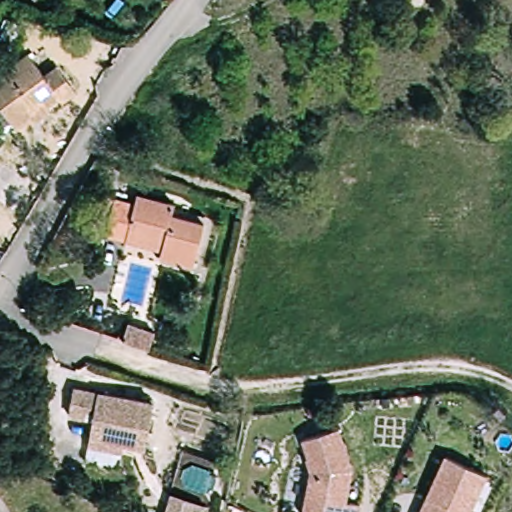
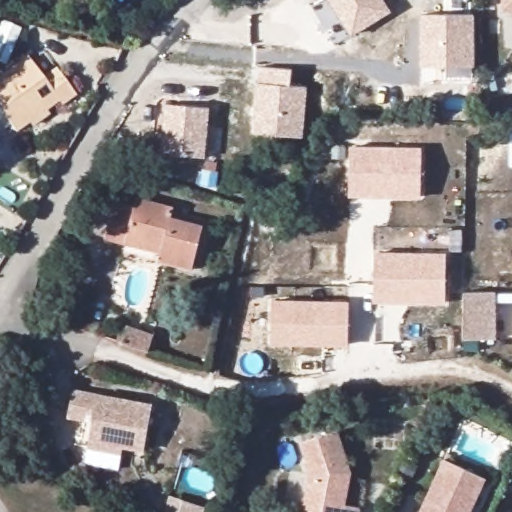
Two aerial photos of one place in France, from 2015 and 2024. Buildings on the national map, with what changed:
new [(329,0),(385,0),(392,11),(351,36),(329,0)]
new [(501,11),(501,0),(512,0),(512,11),(501,11)]
new [(422,14),(475,13),(476,66),(472,66),(472,75),(449,75),(448,66),(422,67),(422,14)]
unchanged [(26,120),(8,132),(0,120),(0,73),(26,56),(41,79),(55,70),(73,96),(59,105),(56,100),(39,110),(43,116),(29,125),(26,120)]
new [(304,137),(252,133),(256,84),(259,84),(261,68),(291,70),(291,84),(308,85),(304,137)]
new [(164,154),(166,103),(209,106),(205,155),(164,154)]
new [(421,196),(348,196),(350,146),(422,146),(421,196)]
unchanged [(101,237),(114,203),(134,210),(138,200),(174,214),(171,224),(203,235),(188,276),(155,265),(158,257),(123,245),(101,237)]
new [(446,302),(374,302),(374,250),(449,251),(446,302)]
new [(497,292),(499,339),(463,339),(464,291),(497,292)]
new [(349,345),(269,345),(272,300),(351,301),(349,345)]
unchanged [(88,440),(93,421),(68,417),(73,390),(151,405),(143,450),(123,447),(121,455),(88,449),(88,440)]
unchanged [(345,506),(361,508),(361,512),(303,512),(310,475),(299,442),(338,429),(353,479),(345,506)]
unchanged [(420,512),(444,458),(487,476),(472,512),(420,512)]
unchanged [(208,506),(206,512),(167,512),(171,497),(208,506)]

